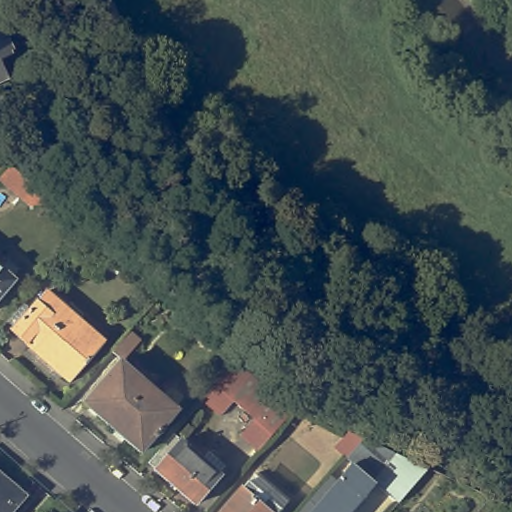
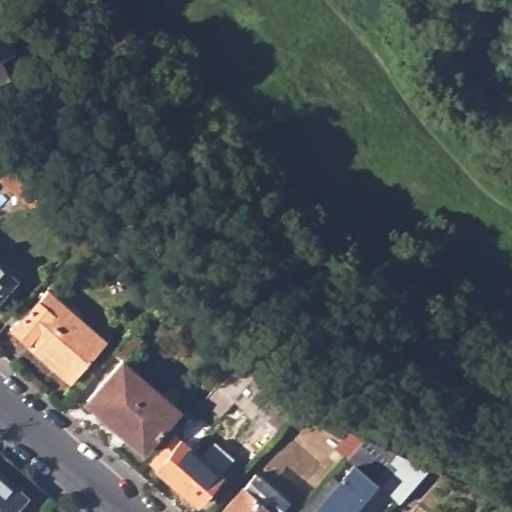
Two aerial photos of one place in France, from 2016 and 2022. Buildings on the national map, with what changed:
unchanged [(7,31),(10,30),(20,52),(18,54),(19,57),(5,63),(15,83),(0,90),(0,27),(5,25),(7,31)]
unchanged [(2,169),(13,155),(55,191),(33,195),(2,169)]
unchanged [(0,301),(0,260),(20,278),(0,301)]
unchanged [(16,331),(50,291),(107,341),(74,381),(16,331)]
unchanged [(244,433),(257,417),(219,383),(240,360),(290,403),(298,407),(261,449),(244,433)]
unchanged [(89,405),(124,363),(181,413),(145,454),(89,405)]
unchanged [(342,447),(355,431),(369,437),(353,456),(342,447)]
unchanged [(156,466),(182,437),(229,478),(204,507),(156,466)]
unchanged [(355,457),(371,438),(435,467),(406,501),(383,481),(362,463),(355,457)]
unchanged [(10,512),(0,512),(0,463),(30,488),(10,512)]
unchanged [(356,512),(320,512),(362,463),(383,481),(356,512)]
unchanged [(259,471),(292,500),(282,512),(223,512),(259,471)]

